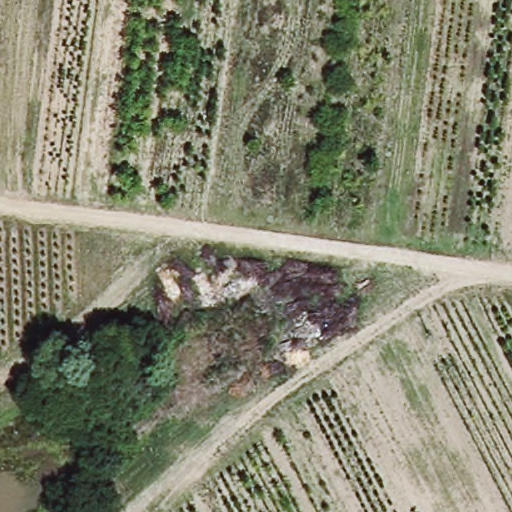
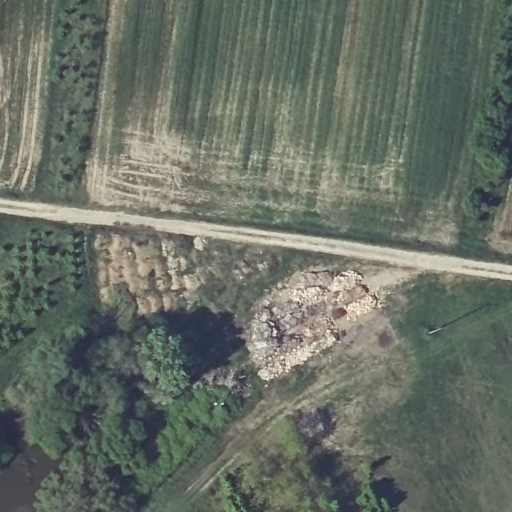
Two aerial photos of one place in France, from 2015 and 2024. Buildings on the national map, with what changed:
[]

